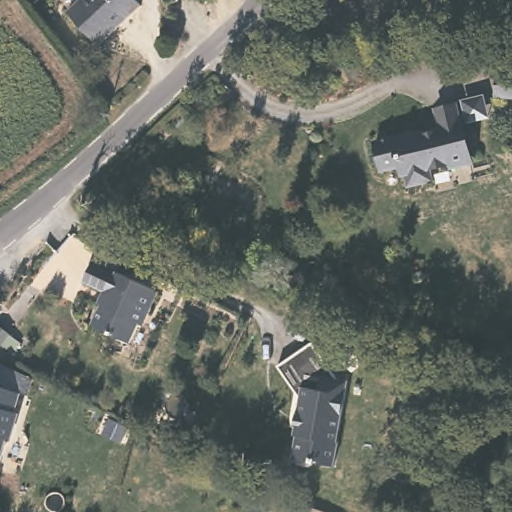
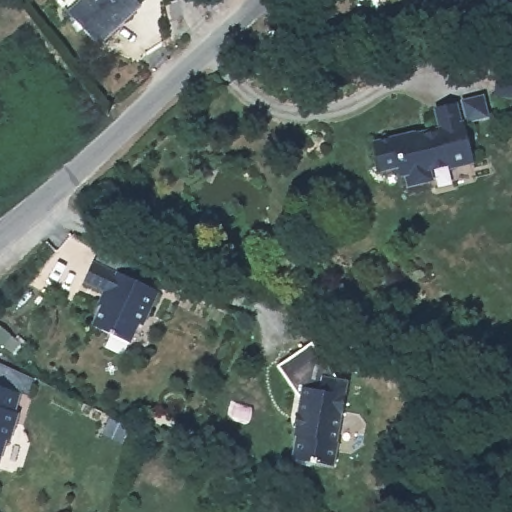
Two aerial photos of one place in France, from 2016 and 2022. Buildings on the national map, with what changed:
unchanged [(99,46),(67,14),(83,0),(137,0),(142,6),(99,46)]
unchanged [(512,79),(512,100),(498,99),(500,79),(512,79)]
unchanged [(473,155),(455,161),(448,159),(432,165),(435,176),(423,180),(413,183),(411,176),(410,172),(406,173),(402,165),(390,169),(385,170),(385,166),(377,144),(396,136),(400,141),(416,136),(415,131),(440,123),(435,106),(455,101),(473,155)]
unchanged [(100,247),(104,249),(124,258),(118,271),(145,282),(154,286),(159,290),(145,324),(141,322),(132,342),(94,325),(109,292),(84,282),(92,262),(94,262),(100,247)]
unchanged [(345,382),(355,387),(331,443),(333,445),(323,468),(307,460),(300,464),(290,457),(288,454),(285,452),(293,432),(290,429),(293,421),(291,420),(305,393),(290,356),(328,340),(345,382)]
unchanged [(20,409),(13,437),(9,436),(4,460),(0,459),(0,383),(21,389),(16,408),(20,409)]

